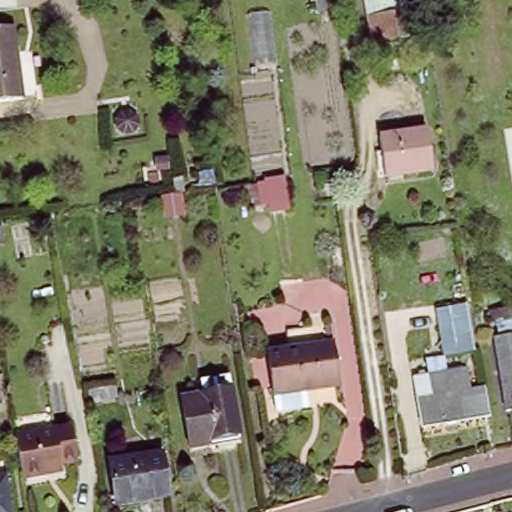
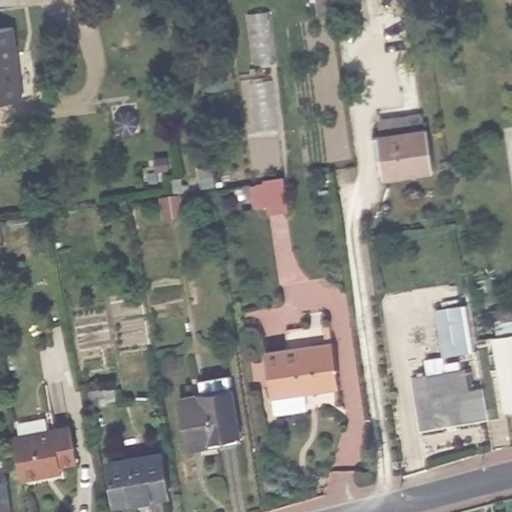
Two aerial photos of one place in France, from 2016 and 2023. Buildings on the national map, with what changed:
unchanged [(27,99),(0,103),(0,30),(15,28),(27,99)]
unchanged [(385,134),(432,126),(438,166),(391,174),(385,134)]
unchanged [(252,189),(266,187),(270,207),(256,209),(252,189)]
unchanged [(183,195),(187,217),(168,221),(163,198),(183,195)]
unchanged [(450,311),(473,307),(480,353),(450,358),(442,307),(450,306),(450,311)]
unchanged [(510,417),(500,344),(512,342),(512,416),(510,417)]
unchanged [(273,355),(329,347),(337,346),(343,388),(335,389),(279,397),(273,355)]
unchanged [(462,393),(477,390),(480,416),(418,427),(415,401),(425,399),(422,378),(460,372),(462,393)]
unchanged [(208,449),(209,453),(190,456),(182,409),(202,406),(199,392),(231,386),(233,401),(240,444),(208,449)]
unchanged [(47,468),(23,471),(16,429),(73,419),(80,454),(64,457),(65,464),(47,468)]
unchanged [(117,463),(170,453),(172,471),(177,495),(154,499),(153,496),(124,501),(120,480),(117,463)]
unchanged [(0,476),(11,475),(16,512),(0,512),(0,476)]

